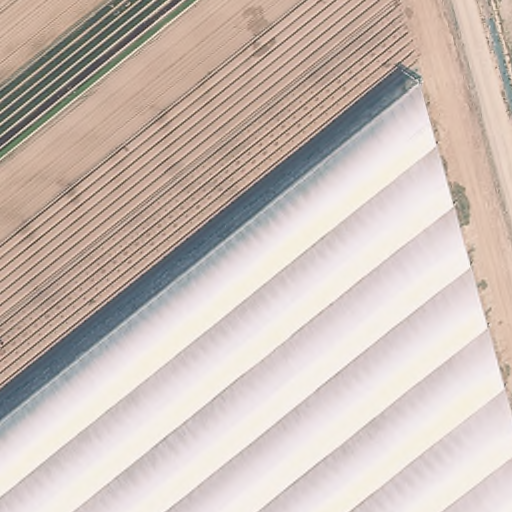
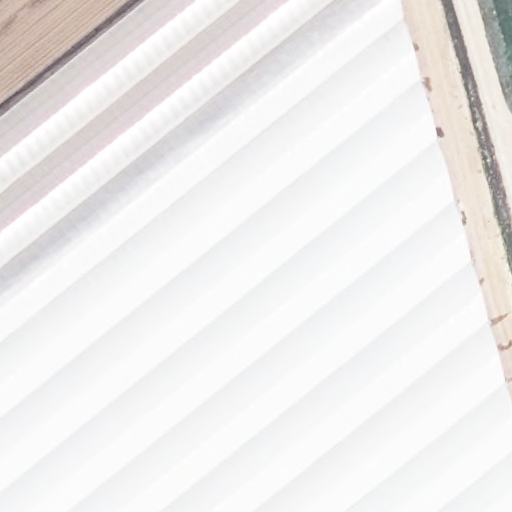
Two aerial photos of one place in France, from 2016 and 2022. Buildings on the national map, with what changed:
new [(397,0),(419,81),(0,417),(0,122),(151,0),(397,0)]
unchanged [(512,411),(512,512),(0,512),(0,417),(419,81),(512,411)]

